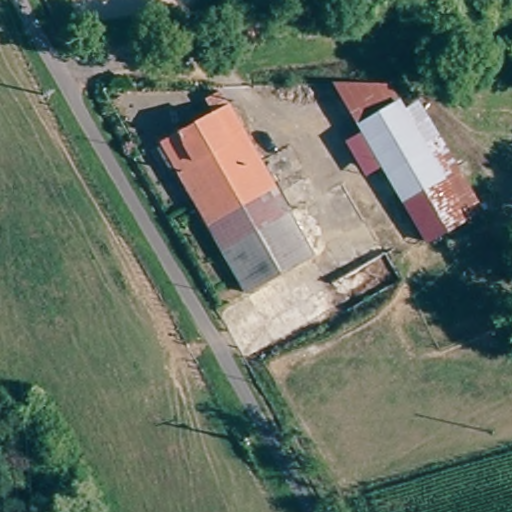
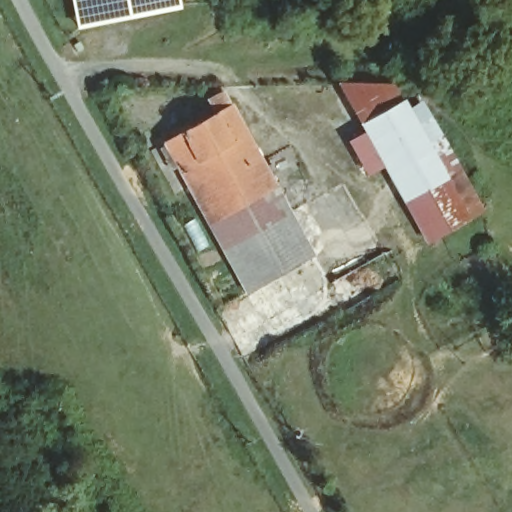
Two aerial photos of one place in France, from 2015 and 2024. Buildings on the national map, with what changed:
new [(179,10),(77,30),(71,0),(178,0),(179,10)]
unchanged [(425,164),(444,154),(478,216),(425,245),(338,84),(383,85),(425,164)]
unchanged [(292,215),(314,255),(245,292),(162,143),(229,105),(264,166),(275,160),(280,170),(269,175),(279,194),(292,215)]

